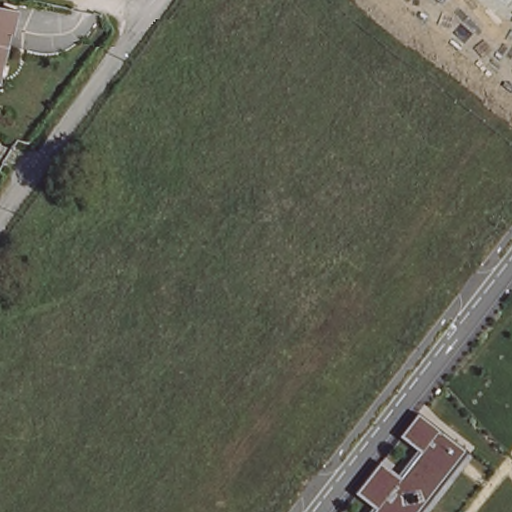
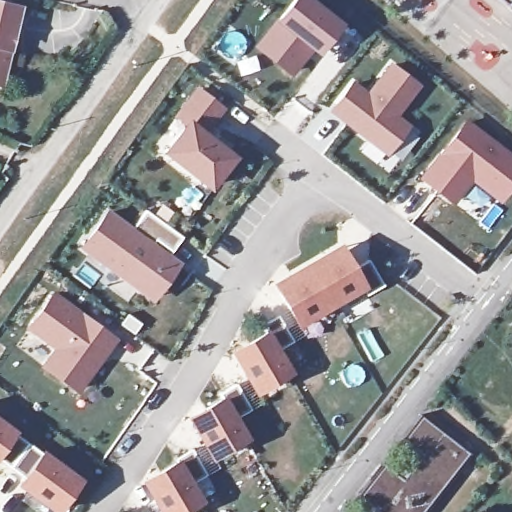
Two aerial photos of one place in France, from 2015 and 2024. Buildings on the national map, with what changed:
unchanged [(6,62),(0,61),(0,0),(12,0),(20,2),(6,62)]
new [(299,0),(310,0),(342,26),(321,51),(316,46),(294,73),(276,58),(262,47),(269,37),(299,0)]
unchanged [(500,0),(512,0),(508,6),(500,0)]
new [(418,88),(395,118),(408,128),(388,154),(334,111),(354,86),(369,98),(393,68),(418,88)]
new [(223,109),(203,135),(234,159),(211,187),(168,153),(190,125),(180,117),(200,91),(223,109)]
new [(469,124),(512,158),(512,185),(500,198),(474,178),(455,202),(426,179),(469,124)]
new [(173,252),(153,236),(137,225),(148,211),(163,223),(183,238),(173,252)]
new [(155,301),(145,293),(86,250),(110,216),(170,260),(180,267),(155,301)]
new [(341,250),(346,258),(354,272),(370,263),(385,288),(368,298),(363,290),(331,308),(309,269),(326,259),(341,250)]
new [(331,308),(300,326),(281,296),(276,287),(293,278),(309,269),(331,308)]
new [(117,340),(80,390),(48,367),(60,349),(33,328),(56,296),(117,340)]
new [(296,344),(280,354),(292,375),(260,394),(242,363),(238,355),(253,346),(270,337),(265,328),(281,319),(296,344)]
new [(235,421),(246,440),(214,459),(196,428),(191,420),(208,410),(223,401),(221,396),(237,386),(252,412),(235,421)]
unchanged [(427,512),(373,512),(374,510),(359,497),(384,466),(400,478),(419,453),(402,440),(421,416),(472,455),(427,512)]
new [(13,469),(0,459),(0,422),(31,445),(13,469)]
new [(28,480),(13,469),(31,445),(82,483),(61,512),(59,512),(31,492),(24,486),(28,480)]
new [(194,492),(203,510),(200,512),(162,512),(153,498),(149,489),(165,480),(181,471),(179,467),(196,457),(211,483),(194,492)]

